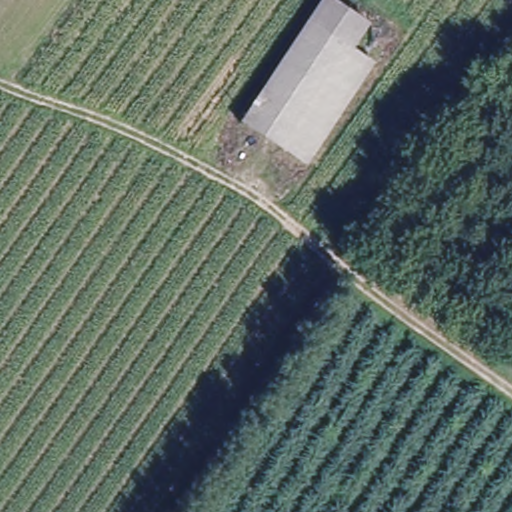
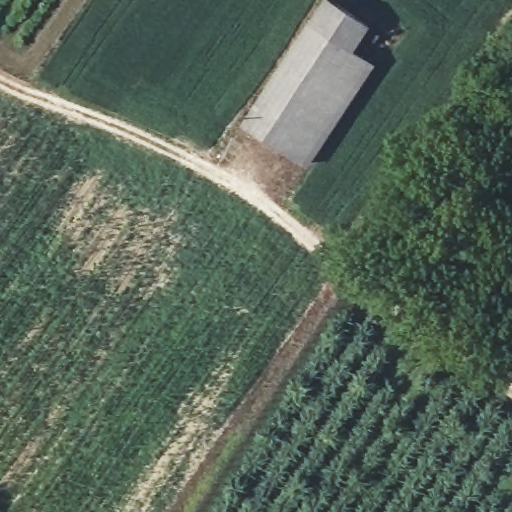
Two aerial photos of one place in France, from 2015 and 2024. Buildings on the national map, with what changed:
unchanged [(249,121),(324,0),(333,0),(368,24),(353,49),(373,63),(310,163),(249,121)]

